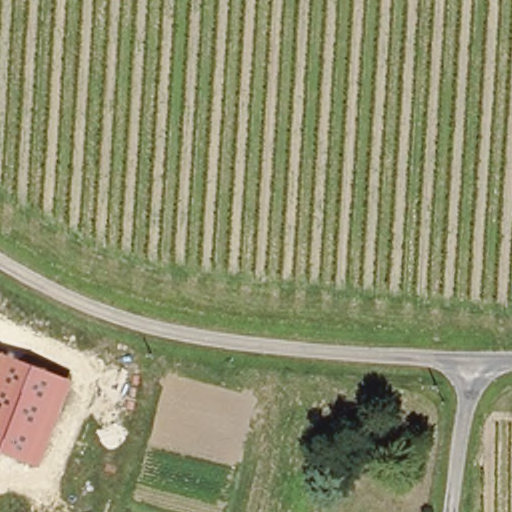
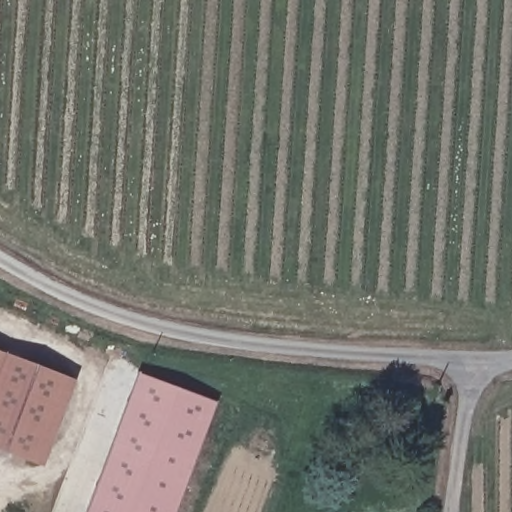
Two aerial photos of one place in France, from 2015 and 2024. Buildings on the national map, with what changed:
unchanged [(74,380),(42,467),(0,451),(0,351),(5,354),(74,380)]
new [(215,401),(176,512),(89,512),(139,376),(215,401)]

